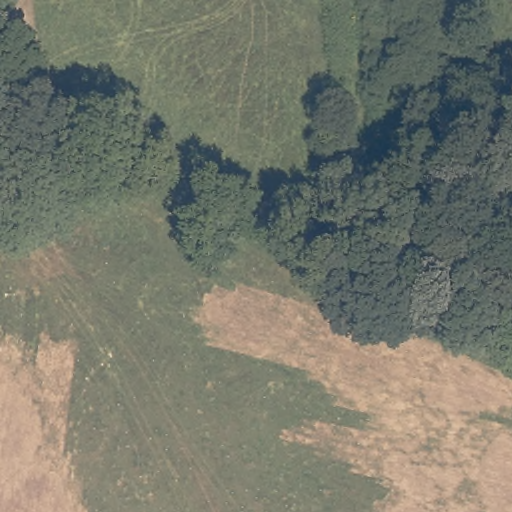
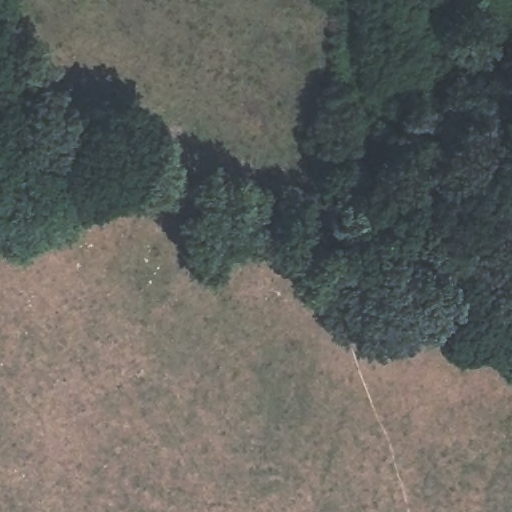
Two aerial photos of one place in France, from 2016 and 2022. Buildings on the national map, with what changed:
[]

